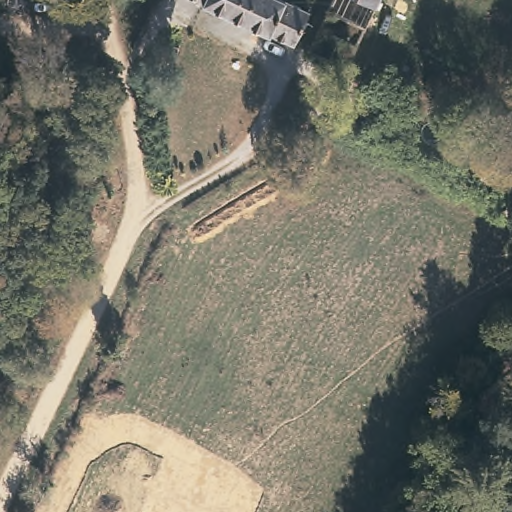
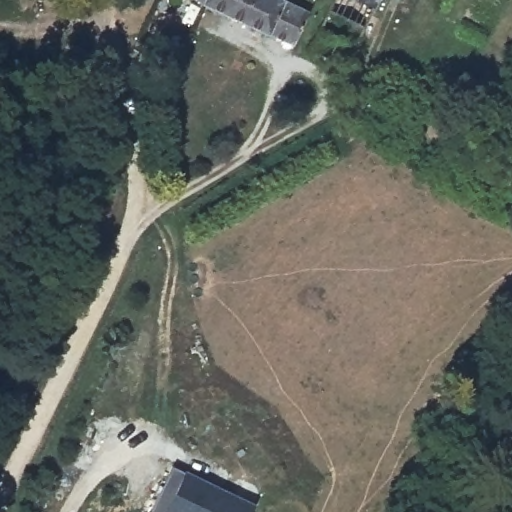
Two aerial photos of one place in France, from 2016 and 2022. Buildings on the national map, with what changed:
unchanged [(287,46),(189,0),(285,0),(304,9),(287,46)]
unchanged [(379,0),(347,71),(304,49),(327,0),(379,0)]
new [(167,466),(180,472),(250,505),(247,512),(145,512),(158,486),(167,466)]

